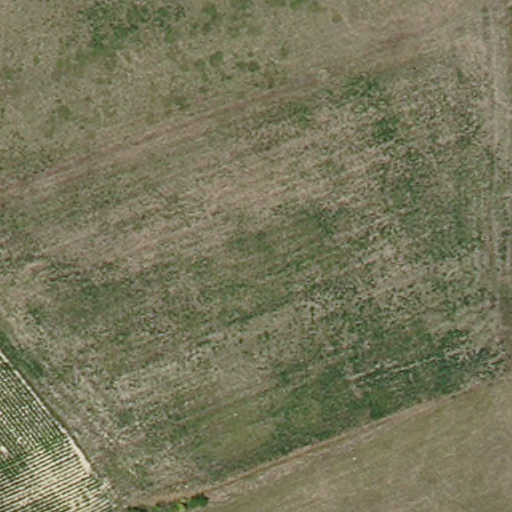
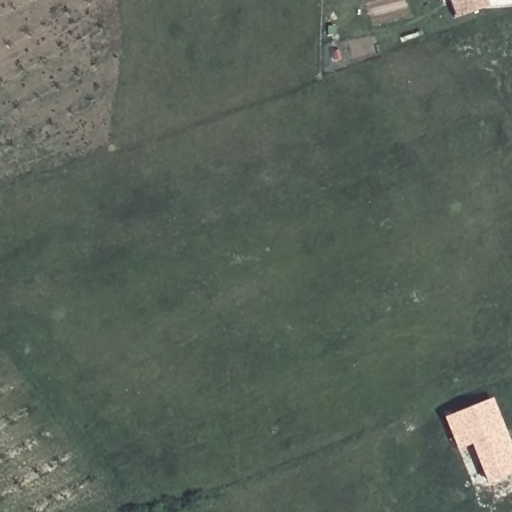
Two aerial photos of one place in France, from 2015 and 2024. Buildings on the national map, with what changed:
new [(447,0),(484,0),(486,6),(453,17),(447,0)]
new [(454,451),(440,418),(490,400),(512,455),(512,474),(484,485),(468,446),(454,451)]

